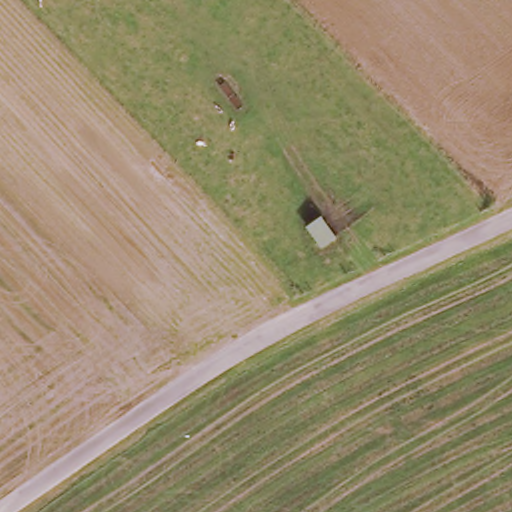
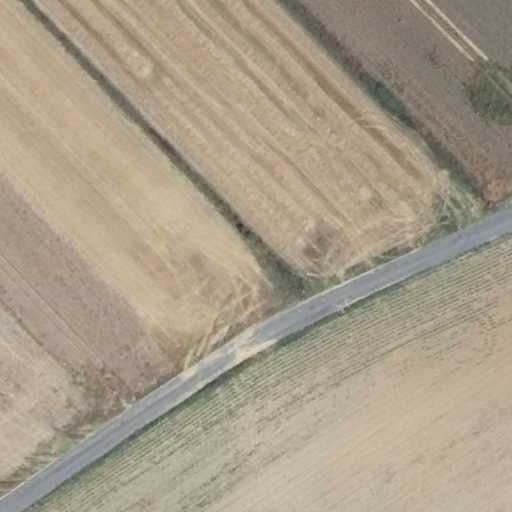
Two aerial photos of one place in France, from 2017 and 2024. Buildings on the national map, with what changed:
unchanged [(306,227),(324,217),(337,241),(321,249),(306,227)]

